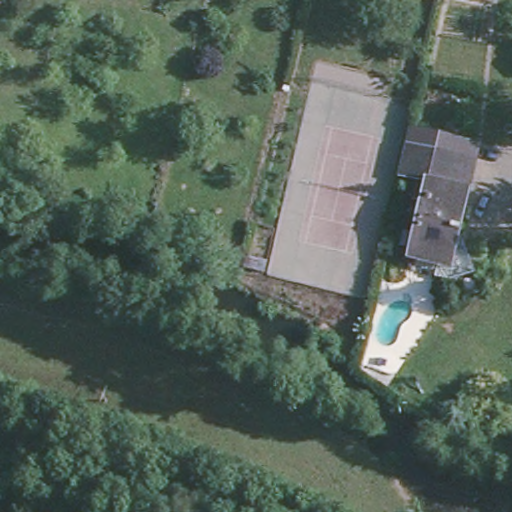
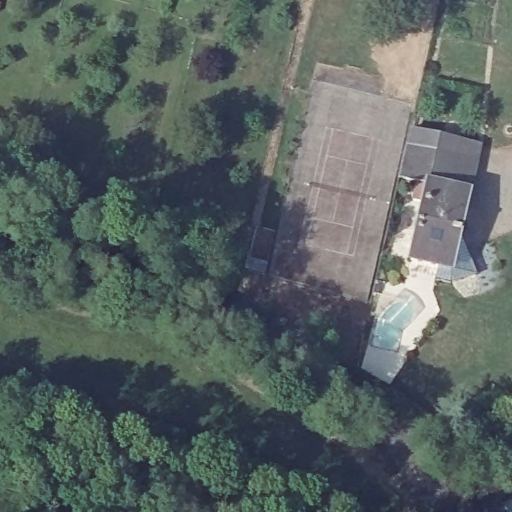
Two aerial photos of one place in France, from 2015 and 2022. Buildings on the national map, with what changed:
unchanged [(481,170),(465,265),(416,256),(432,174),(403,169),(412,126),(486,142),(481,170)]

